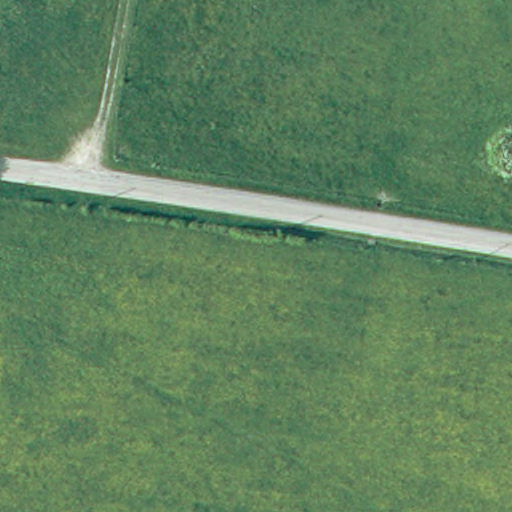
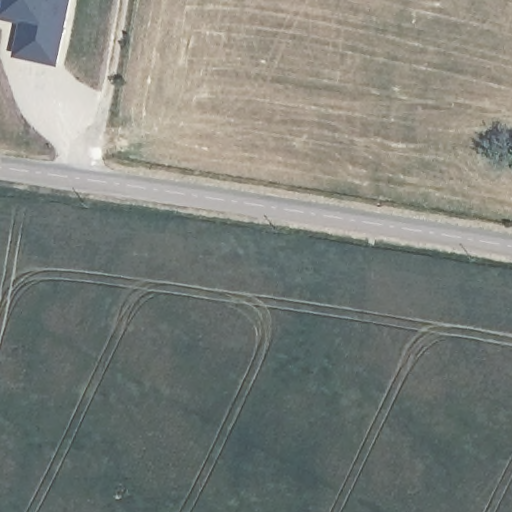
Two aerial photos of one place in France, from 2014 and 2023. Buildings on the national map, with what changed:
new [(59,65),(15,55),(22,22),(0,17),(0,0),(73,0),(59,65)]

